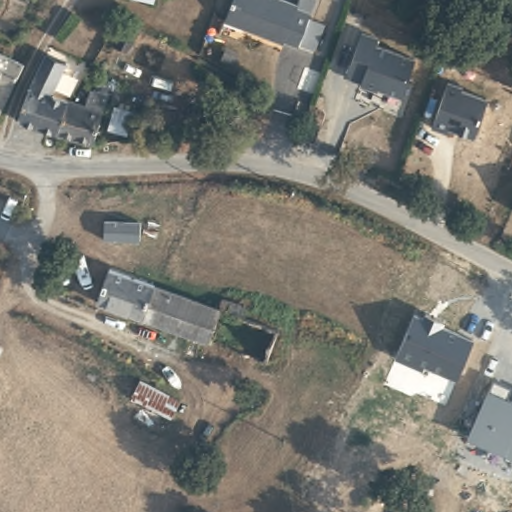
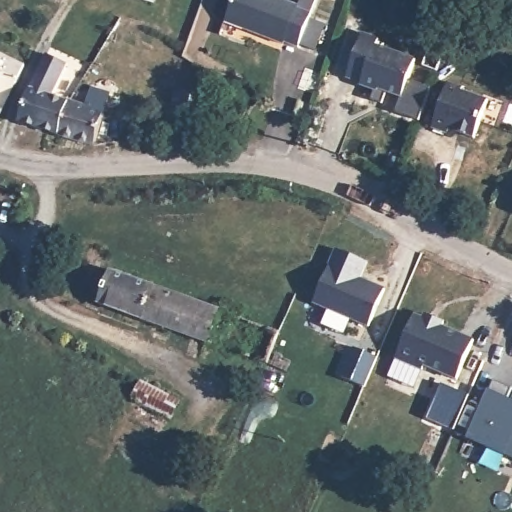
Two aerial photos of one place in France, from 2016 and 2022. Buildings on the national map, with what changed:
unchanged [(149,1),(146,0),(150,0),(149,1)]
unchanged [(317,45),(302,40),(300,43),(288,38),(285,41),(228,20),(234,0),(293,0),(300,2),(301,0),(315,0),(310,14),(325,19),(317,45)]
unchanged [(362,32),(418,52),(403,95),(347,75),(362,32)]
unchanged [(19,117),(24,98),(48,51),(66,59),(51,92),(70,98),(59,129),(19,117)]
unchanged [(0,111),(0,54),(25,66),(0,111)]
unchanged [(447,82),(488,97),(474,138),(432,126),(447,82)]
unchanged [(70,98),(85,103),(90,86),(108,92),(94,140),(59,129),(70,98)]
new [(313,303),(334,250),(367,263),(361,277),(384,287),(367,327),(313,303)]
unchanged [(207,339),(191,333),(99,303),(109,271),(218,307),(217,311),(207,339)]
unchanged [(427,365),(423,371),(399,359),(417,316),(423,319),(426,312),(447,321),(445,328),(472,341),(458,378),(427,365)]
new [(364,386),(339,376),(352,347),(376,357),(364,386)]
demolished [(414,376),(416,380),(411,391),(403,388),(402,383),(403,377),(408,374),(414,376)]
unchanged [(469,440),(492,392),(498,381),(512,388),(512,396),(510,399),(512,400),(512,458),(469,440)]
unchanged [(131,405),(124,401),(131,385),(170,403),(163,420),(131,405)]

